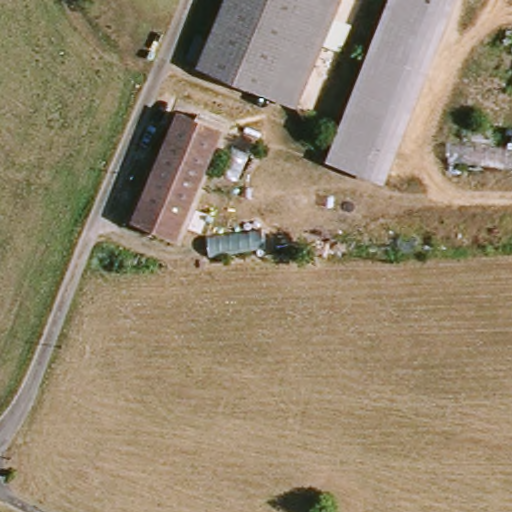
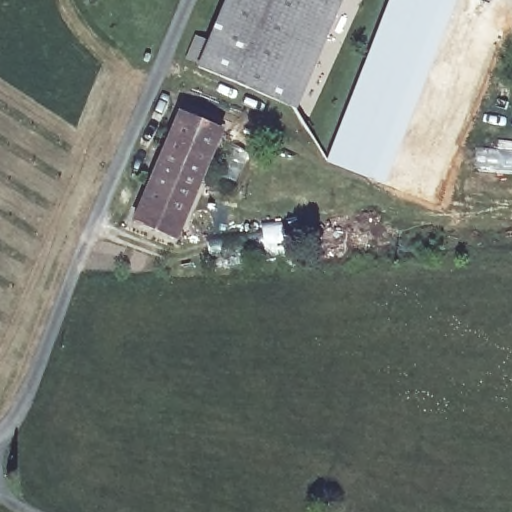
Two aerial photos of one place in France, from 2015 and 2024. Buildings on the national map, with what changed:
unchanged [(293,112),(197,70),(227,0),(341,0),(293,112)]
unchanged [(382,189),(323,164),(394,0),(464,0),(382,189)]
unchanged [(172,242),(130,224),(177,117),(195,125),(199,118),(222,127),(172,242)]

